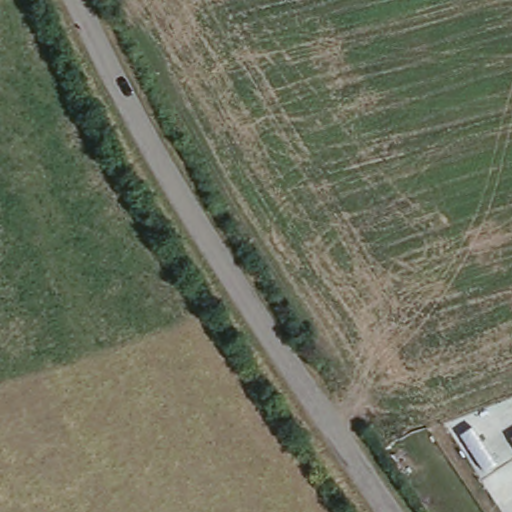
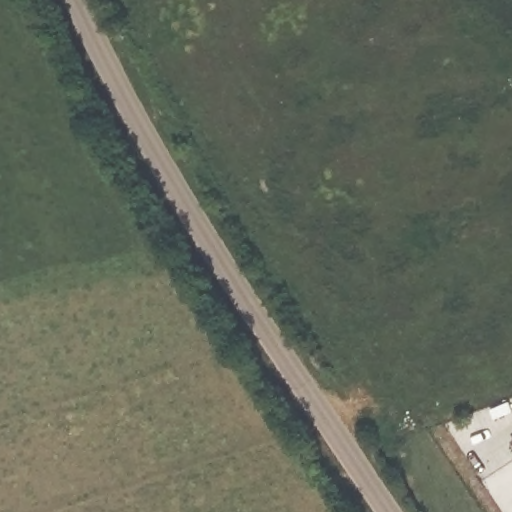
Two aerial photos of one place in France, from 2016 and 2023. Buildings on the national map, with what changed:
unchanged [(512,439),(512,440),(511,439),(512,439)]

